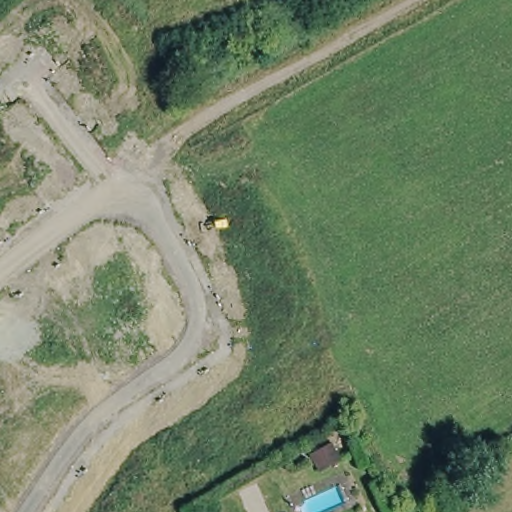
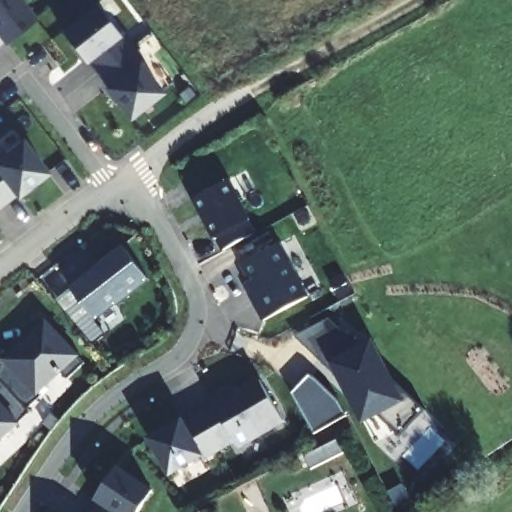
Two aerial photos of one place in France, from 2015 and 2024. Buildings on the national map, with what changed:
new [(0,46),(0,0),(23,0),(37,16),(0,46)]
new [(167,91),(130,120),(62,30),(97,3),(167,91)]
new [(0,212),(0,156),(24,138),(52,171),(0,212)]
new [(251,219),(257,231),(224,250),(217,236),(214,239),(194,199),(232,179),(251,219)]
new [(311,294),(266,320),(247,282),(251,280),(242,262),(283,241),(311,294)]
new [(151,280),(119,305),(117,304),(97,319),(106,332),(95,344),(55,300),(124,245),(151,280)]
new [(80,357),(84,362),(70,377),(63,370),(40,394),(42,395),(31,407),(33,410),(22,422),(0,443),(0,354),(2,353),(5,356),(47,317),(82,355),(80,357)]
new [(358,345),(374,338),(400,387),(424,407),(401,432),(380,415),(363,422),(337,370),(297,335),(331,318),(358,345)]
new [(171,476),(148,436),(185,415),(260,375),(286,423),(240,447),(237,440),(206,455),(171,476)]
new [(139,512),(89,512),(120,465),(155,488),(139,512)]

